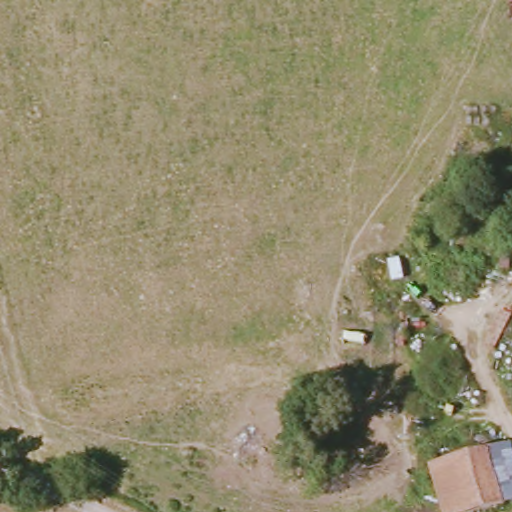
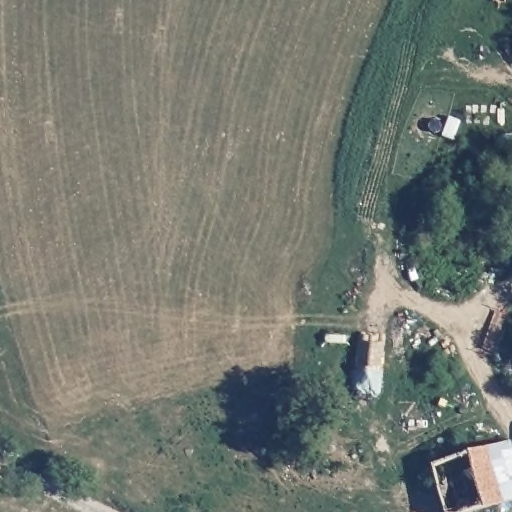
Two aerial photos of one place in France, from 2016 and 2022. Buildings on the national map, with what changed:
unchanged [(503,503),(488,449),(507,443),(512,459),(512,500),(503,503)]
unchanged [(488,449),(503,503),(474,512),(442,512),(430,466),(488,449)]

